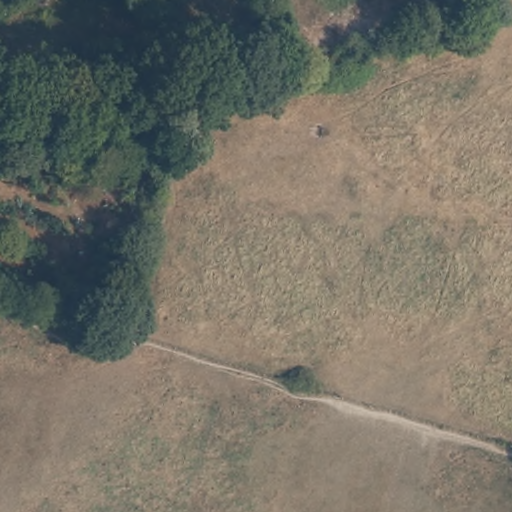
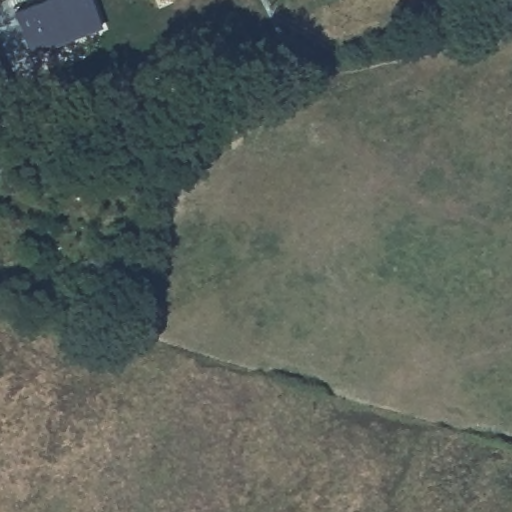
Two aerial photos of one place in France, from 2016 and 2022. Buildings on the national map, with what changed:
new [(32,54),(15,10),(42,0),(92,0),(104,27),(32,54)]

